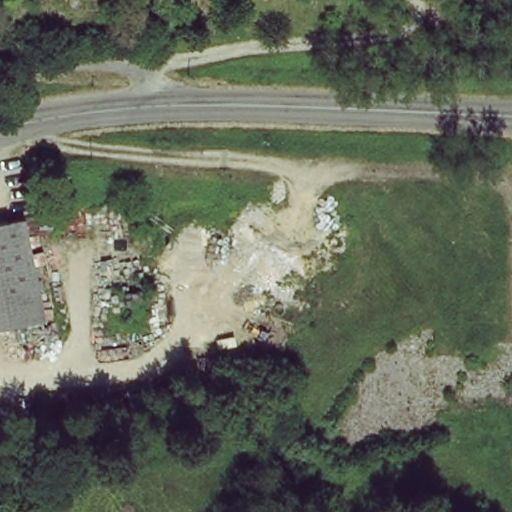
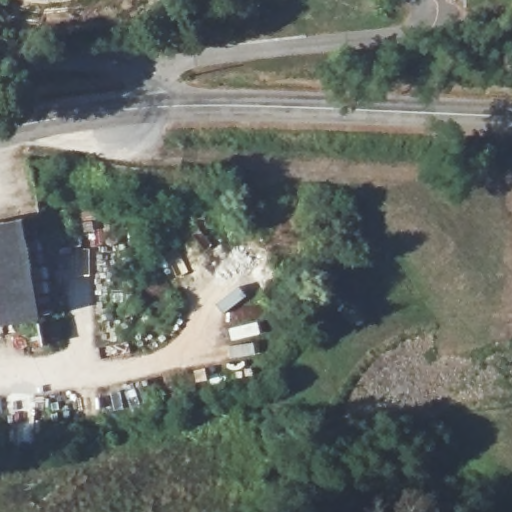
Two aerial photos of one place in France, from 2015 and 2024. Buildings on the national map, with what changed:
unchanged [(0,327),(0,225),(22,221),(39,319),(0,327)]

